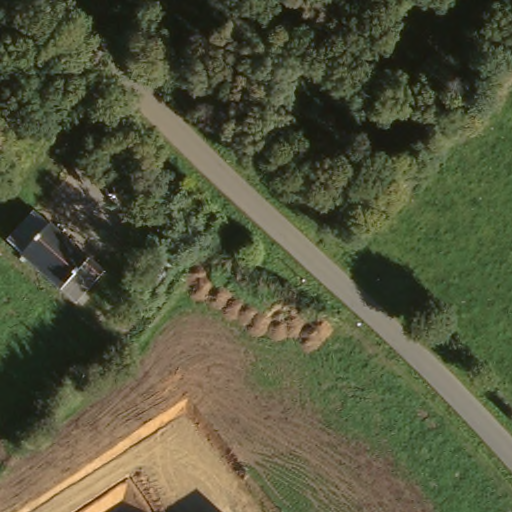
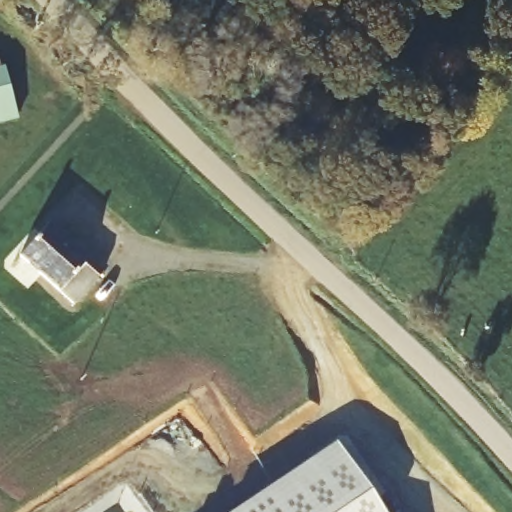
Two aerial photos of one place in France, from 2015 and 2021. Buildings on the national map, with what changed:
new [(19,120),(0,124),(0,69),(4,68),(19,120)]
unchanged [(70,312),(14,261),(16,260),(1,246),(28,216),(43,230),(44,229),(99,279),(70,312)]
new [(338,441),(386,512),(231,512),(338,441)]

